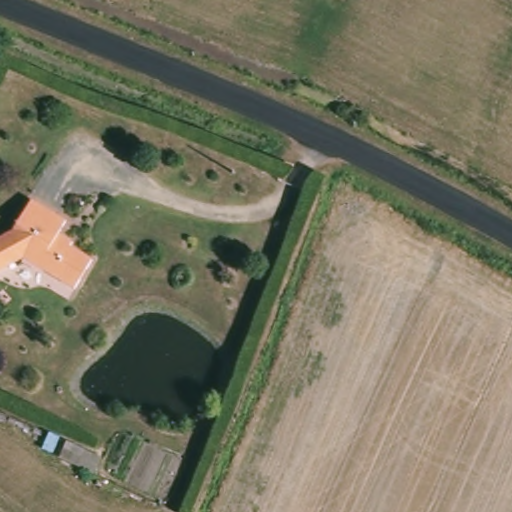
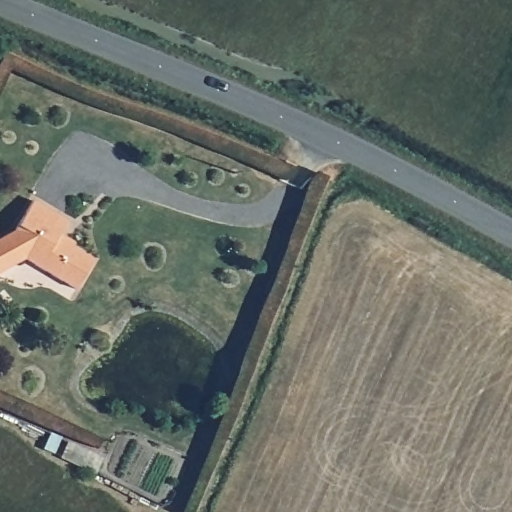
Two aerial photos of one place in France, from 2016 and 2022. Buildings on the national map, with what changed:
unchanged [(71,245),(83,254),(81,259),(89,265),(74,293),(20,264),(0,273),(0,241),(19,233),(44,208),(77,229),(71,245)]

